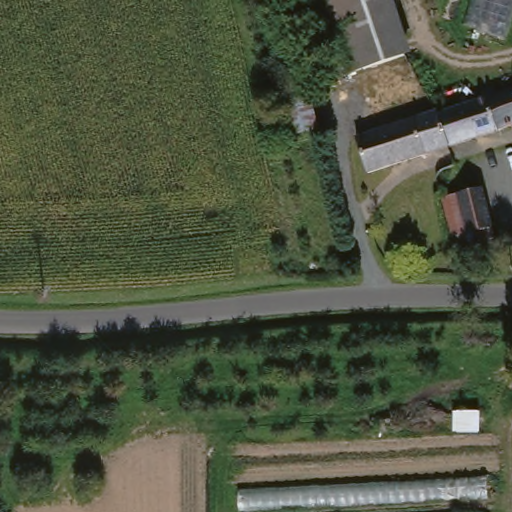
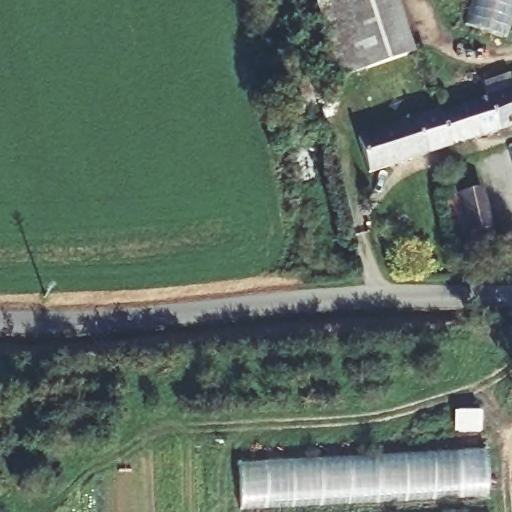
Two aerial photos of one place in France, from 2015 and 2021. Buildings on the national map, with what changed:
unchanged [(410,55),(340,79),(338,71),(314,2),(320,0),(391,0),(410,55)]
unchanged [(275,99),(306,88),(320,135),(290,146),(275,99)]
unchanged [(496,134),(484,102),(499,97),(512,92),(512,127),(496,134)]
unchanged [(408,163),(365,175),(354,144),(484,102),(496,134),(408,163)]
unchanged [(483,192),(496,256),(456,265),(443,200),(483,192)]
unchanged [(454,431),(455,410),(480,411),(480,433),(454,431)]
new [(489,498),(241,511),(239,464),(487,449),(489,498)]

